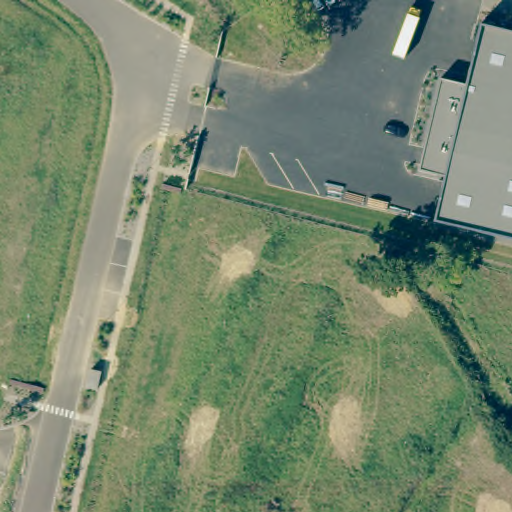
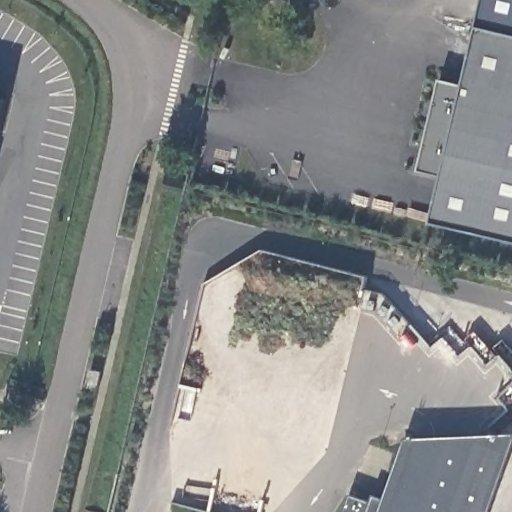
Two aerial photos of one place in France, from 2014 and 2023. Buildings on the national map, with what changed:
demolished [(316,62),(293,29),(310,17),(333,50),(316,62)]
unchanged [(442,179),(419,172),(439,81),(464,87),(478,27),(512,36),(512,240),(431,221),(442,179)]
new [(0,97),(4,98),(0,118),(0,97)]
new [(94,369),(104,371),(100,390),(90,388),(94,369)]
new [(492,512),(345,512),(352,493),(373,500),(375,493),(388,497),(407,439),(512,433),(512,455),(492,512)]

